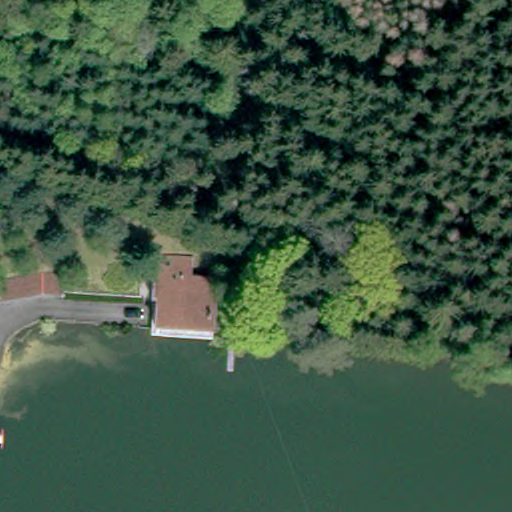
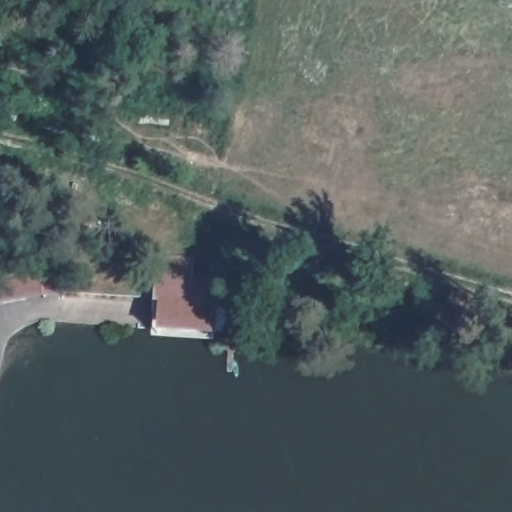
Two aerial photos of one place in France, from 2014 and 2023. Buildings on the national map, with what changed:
unchanged [(214,278),(214,321),(158,321),(158,278),(214,278)]
unchanged [(27,282),(31,300),(0,306),(0,287),(27,282)]

